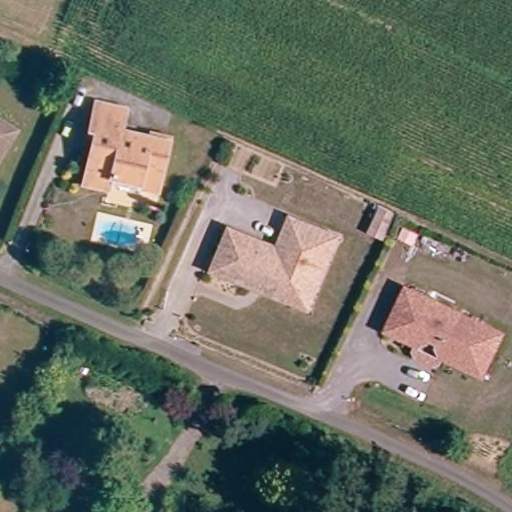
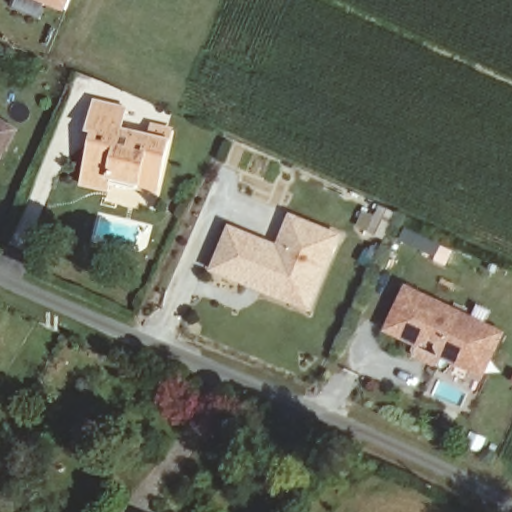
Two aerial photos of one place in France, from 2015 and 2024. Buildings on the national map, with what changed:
new [(72,0),(66,13),(33,0),(72,0)]
unchanged [(110,194),(85,185),(98,146),(102,135),(93,133),(99,114),(104,101),(136,112),(131,125),(128,134),(156,143),(158,137),(175,142),(173,148),(157,194),(154,202),(112,188),(110,194)]
unchanged [(15,130),(13,134),(0,167),(0,121),(15,130)]
unchanged [(395,206),(385,229),(370,222),(380,199),(395,206)]
unchanged [(297,303),(218,270),(234,231),(282,250),(295,219),(340,238),(330,263),(311,308),(297,303)]
unchanged [(482,373),(468,367),(441,354),(437,363),(413,353),(418,344),(386,329),(405,287),(487,324),(501,330),(482,373)]

